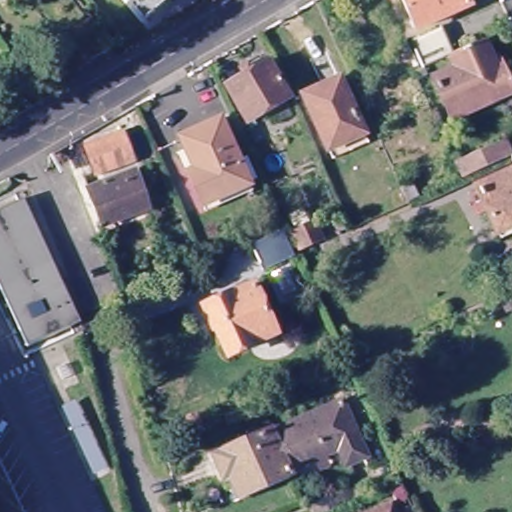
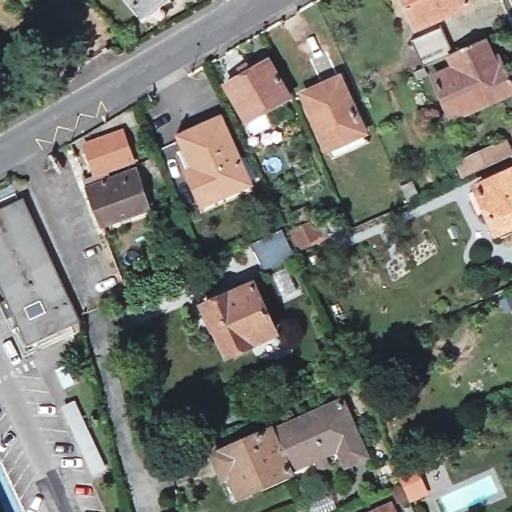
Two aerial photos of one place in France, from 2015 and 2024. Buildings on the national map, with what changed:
unchanged [(145,14),(142,16),(140,15),(128,0),(161,0),(145,14)]
unchanged [(475,7),(420,30),(407,0),(472,0),(475,7)]
unchanged [(505,56),(511,70),(512,72),(512,96),(458,121),(439,81),(461,72),(454,56),(428,68),(417,42),(447,29),(458,55),(488,42),(496,60),(505,56)]
unchanged [(286,105),(245,129),(224,92),(240,82),(235,74),(244,69),(249,77),(266,67),(286,105)]
unchanged [(422,80),(419,72),(428,68),(432,77),(422,80)]
unchanged [(333,162),(328,151),(303,97),(339,81),(363,135),(368,146),(333,162)]
unchanged [(258,177),(249,181),(252,186),(205,206),(193,180),(180,150),(187,147),(183,137),(223,120),(241,162),(250,159),(258,177)]
unchanged [(113,129),(126,159),(95,174),(82,146),(113,129)]
unchanged [(512,143),(512,153),(466,174),(460,161),(510,138),(512,143)]
unchanged [(106,229),(89,190),(130,170),(134,179),(137,177),(151,209),(106,229)]
unchanged [(512,239),(507,242),(505,235),(482,186),(512,172),(512,239)]
unchanged [(80,319),(82,324),(79,326),(28,350),(0,288),(0,212),(25,201),(80,319)]
unchanged [(315,221),(324,240),(300,250),(292,231),(315,221)]
unchanged [(283,235),(293,260),(264,272),(252,249),(283,235)]
unchanged [(253,356),(234,363),(231,357),(220,331),(216,332),(205,310),(254,287),(276,337),(279,343),(253,356)]
unchanged [(209,453),(263,428),(265,432),(336,401),(361,456),(339,466),(331,447),(281,470),(284,477),(236,498),(228,482),(220,486),(215,475),(217,474),(209,453)]
unchanged [(402,512),(370,512),(396,500),(402,512)]

